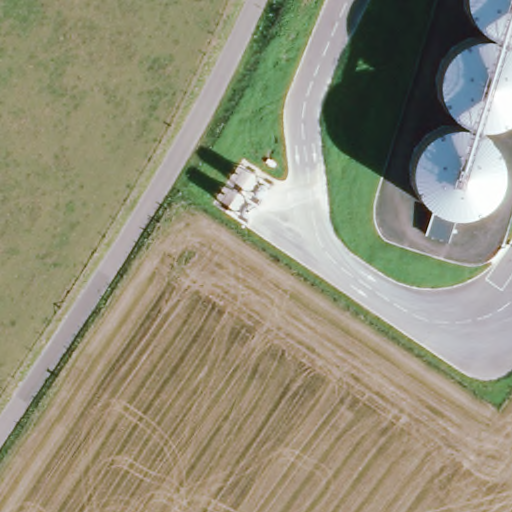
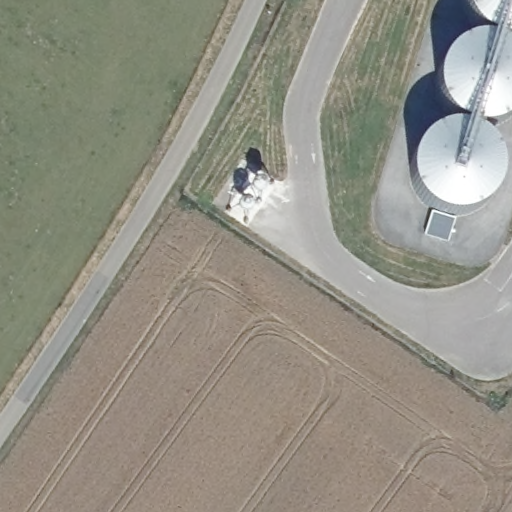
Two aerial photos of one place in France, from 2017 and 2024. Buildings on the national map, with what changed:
unchanged [(500,46),(487,43),(477,38),(467,28),(460,16),(457,4),(457,0),(512,0),(512,44),(500,46)]
unchanged [(512,62),(512,115),(505,121),(494,129),(477,132),(460,129),(448,125),(437,113),(432,101),(430,87),(432,72),(439,59),(452,48),(466,44),(480,43),(489,45),(500,49),(509,57),(512,62)]
unchanged [(494,169),(494,182),(492,193),(487,202),(476,212),(462,219),(445,220),(430,216),(418,209),(410,198),(405,185),(404,168),(410,152),(420,140),(432,134),(449,131),(465,134),(478,140),(487,151),(494,169)]

